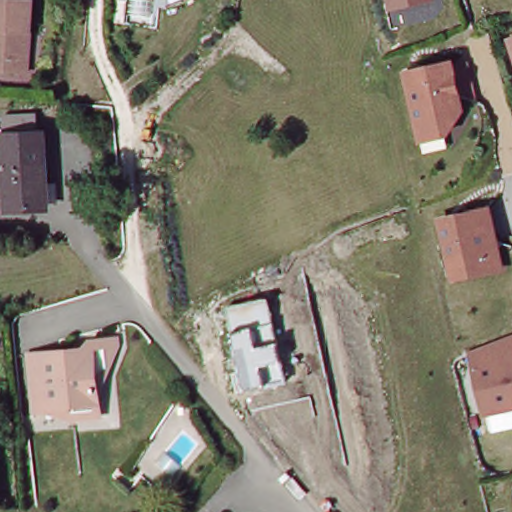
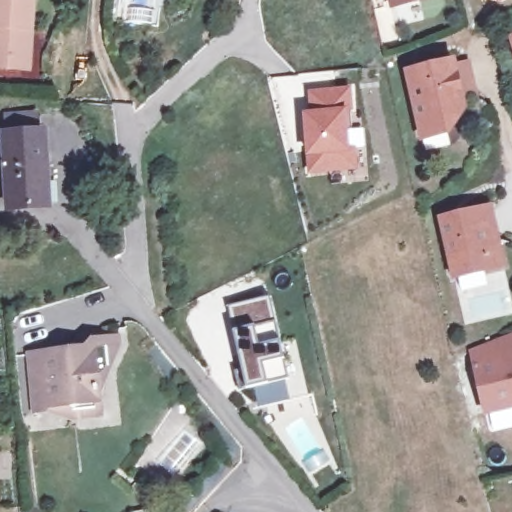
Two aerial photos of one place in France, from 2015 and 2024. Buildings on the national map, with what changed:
unchanged [(26,32),(23,70),(0,69),(0,0),(38,0),(36,32),(26,32)]
unchanged [(391,0),(418,0),(392,6),(391,0)]
unchanged [(512,42),(512,59),(507,44),(512,42)]
unchanged [(453,62),(463,109),(456,120),(444,122),(438,133),(423,137),(409,73),(453,62)]
new [(304,154),(301,113),(305,112),(306,92),(349,88),(347,112),(350,147),(356,146),(356,170),(306,172),(304,154)]
unchanged [(49,215),(9,217),(6,145),(5,125),(35,124),(37,144),(46,144),(49,215)]
unchanged [(484,209),(492,240),(486,257),(472,272),(452,277),(436,220),(484,209)]
unchanged [(271,297),(288,381),(239,392),(233,375),(238,372),(230,333),(233,332),(226,307),(271,297)]
unchanged [(96,407),(71,410),(58,402),(48,403),(46,399),(29,400),(27,370),(25,351),(43,349),(54,348),(80,345),(86,335),(101,333),(113,332),(114,339),(105,363),(93,378),(96,407)]
unchanged [(473,348),(501,338),(507,336),(512,333),(512,406),(485,412),(473,348)]

